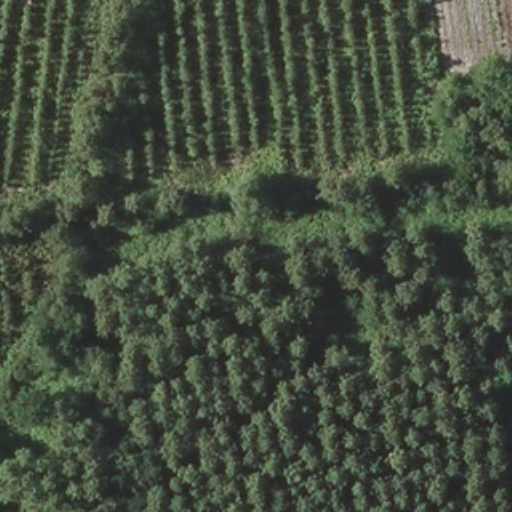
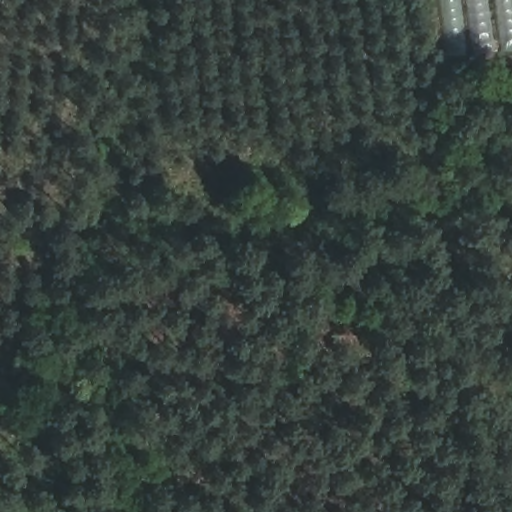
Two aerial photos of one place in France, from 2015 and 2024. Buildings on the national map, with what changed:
new [(447,57),(439,0),(512,0),(512,48),(447,57)]

